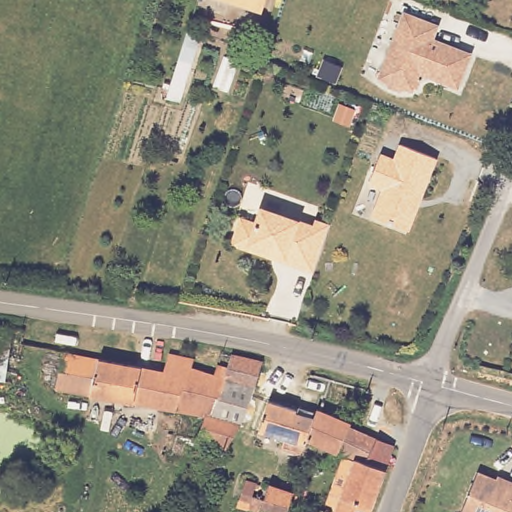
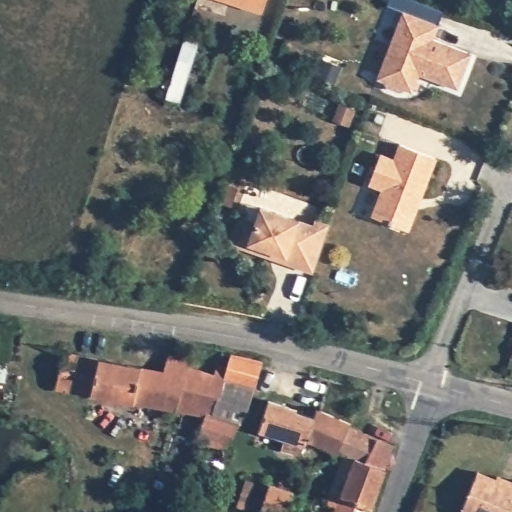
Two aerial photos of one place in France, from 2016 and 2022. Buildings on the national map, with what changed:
unchanged [(260,10),(227,0),(263,0),(260,10)]
unchanged [(406,8),(441,22),(436,35),(474,50),(460,85),(422,70),(415,88),(408,85),(402,88),(390,83),(388,78),(380,75),(406,8)]
unchanged [(178,102),(164,95),(187,25),(202,29),(178,102)]
unchanged [(222,54),(238,59),(228,90),(211,85),(222,54)]
unchanged [(384,149),(392,154),(400,140),(440,157),(408,229),(370,213),(379,191),(371,188),(384,149)]
unchanged [(233,240),(240,220),(255,225),(260,209),(312,227),(314,221),(329,227),(313,273),(282,263),(231,245),(233,240)]
unchanged [(9,390),(0,389),(0,355),(3,333),(21,336),(13,390),(9,390)]
unchanged [(62,352),(164,369),(169,350),(193,356),(190,365),(214,371),(217,363),(227,365),(213,411),(204,410),(203,414),(55,387),(62,352)]
unchanged [(263,358),(262,361),(252,390),(240,422),(226,446),(200,439),(196,439),(203,414),(204,410),(213,411),(227,365),(231,350),(263,358)]
unchanged [(308,438),(301,442),(259,428),(269,399),(296,408),(295,411),(313,417),(316,406),(349,420),(348,423),(336,450),(308,438)]
unchanged [(384,466),(387,466),(369,512),(336,512),(339,504),(326,498),(344,454),(336,450),(348,423),(358,427),(394,444),(384,466)]
unchanged [(298,453),(279,447),(282,438),(301,443),(298,453)]
unchanged [(472,470),(507,484),(510,477),(512,478),(512,512),(458,512),(456,511),(472,470)]
unchanged [(264,505),(269,492),(291,499),(287,512),(247,512),(250,502),(264,505)]

